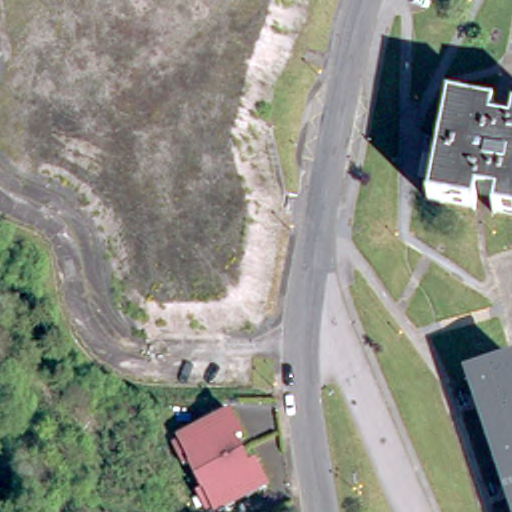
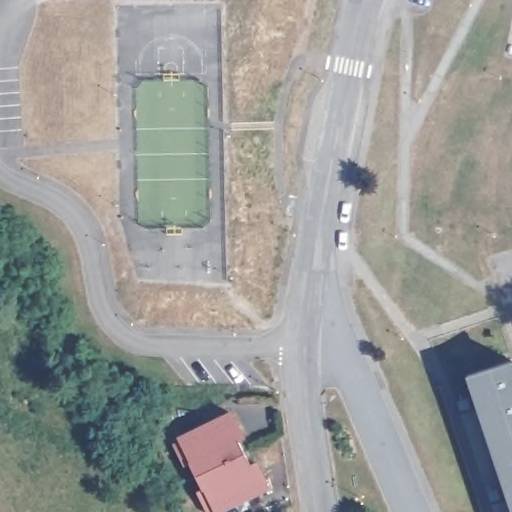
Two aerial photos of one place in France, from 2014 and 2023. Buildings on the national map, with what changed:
demolished [(490,104),(487,121),(507,126),(511,108),(512,108),(512,211),(490,207),(494,191),(475,186),(470,203),(425,194),(444,95),(490,104)]
unchanged [(468,374),(512,358),(512,505),(468,374)]
unchanged [(248,496),(245,491),(233,497),(236,503),(220,511),(218,507),(207,512),(196,491),(203,488),(191,463),(185,466),(173,444),(182,439),(180,435),(197,426),(200,431),(211,425),(209,420),(232,408),(245,435),(239,439),(251,463),(257,460),(263,473),(270,486),(260,490),(248,496)]

